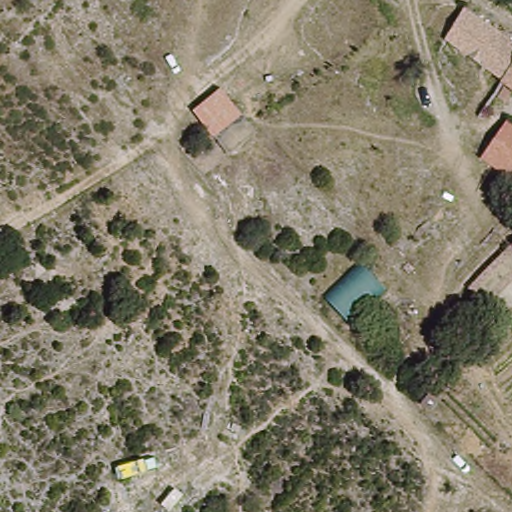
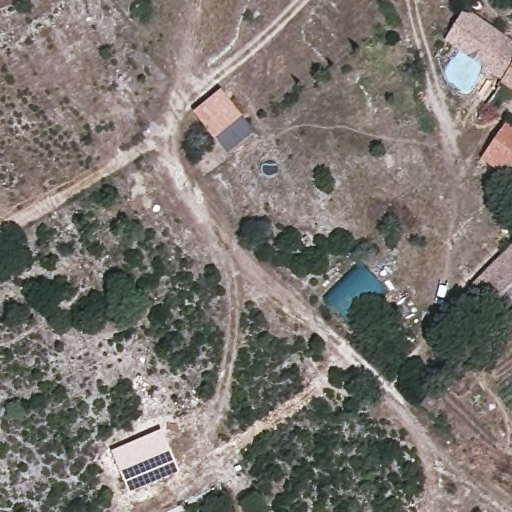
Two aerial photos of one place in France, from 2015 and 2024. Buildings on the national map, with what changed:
unchanged [(442,38),(462,8),(512,43),(512,62),(500,79),(442,38)]
unchanged [(500,79),(512,62),(512,88),(500,79)]
unchanged [(223,86),(246,117),(215,136),(195,107),(223,86)]
unchanged [(510,123),(512,124),(512,154),(496,143),(510,123)]
unchanged [(388,290),(351,320),(327,295),(365,262),(388,290)]
unchanged [(495,296),(512,278),(512,313),(510,315),(495,296)]
new [(131,494),(113,451),(163,429),(182,472),(131,494)]

